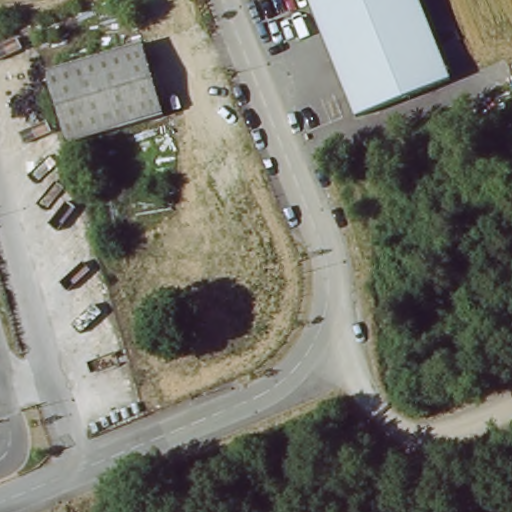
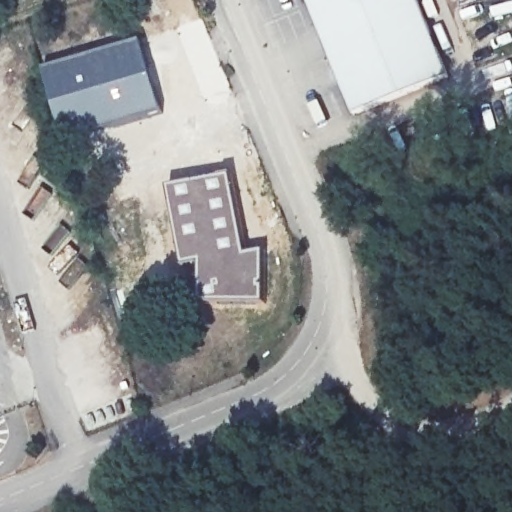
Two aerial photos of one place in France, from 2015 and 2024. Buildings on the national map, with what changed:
unchanged [(399,96),(351,113),(310,0),(418,0),(447,78),(399,96)]
unchanged [(143,42),(164,115),(67,143),(46,71),(143,42)]
new [(232,174),(248,253),(264,250),(265,302),(200,302),(199,264),(184,267),(169,186),(232,174)]

